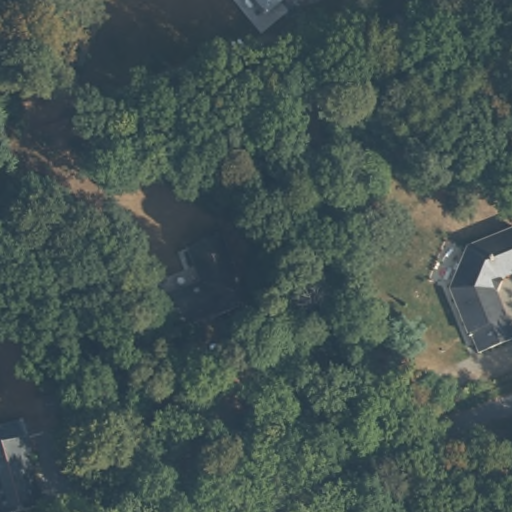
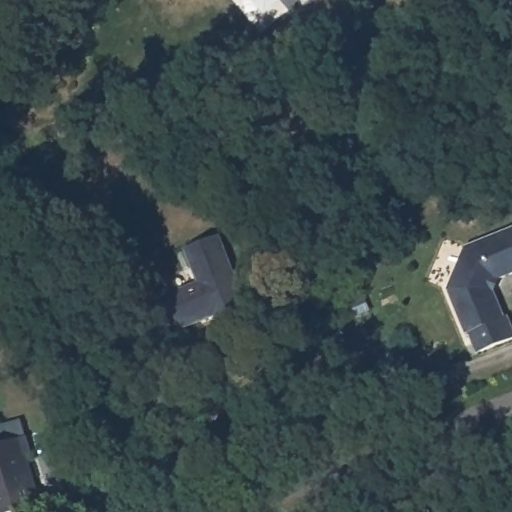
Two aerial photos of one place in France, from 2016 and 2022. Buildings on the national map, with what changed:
unchanged [(265,17),(251,0),(285,0),(265,17)]
unchanged [(471,328),(467,328),(451,288),(469,245),(512,229),(512,275),(496,281),(491,293),(512,329),(512,333),(478,346),(471,328)]
unchanged [(195,281),(181,246),(219,233),(245,305),(178,333),(156,297),(195,281)]
unchanged [(0,512),(0,441),(16,435),(26,455),(20,457),(32,486),(42,510),(36,512),(0,512)]

